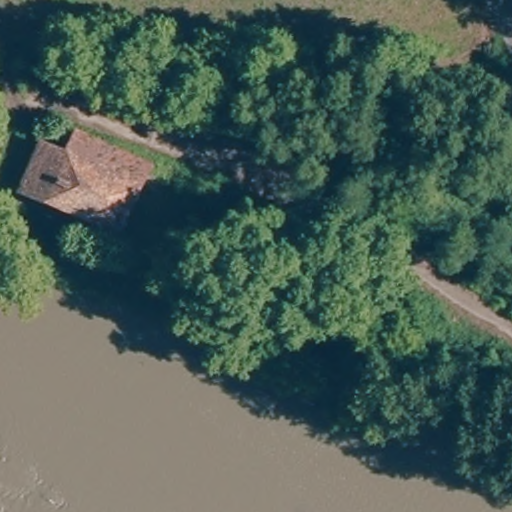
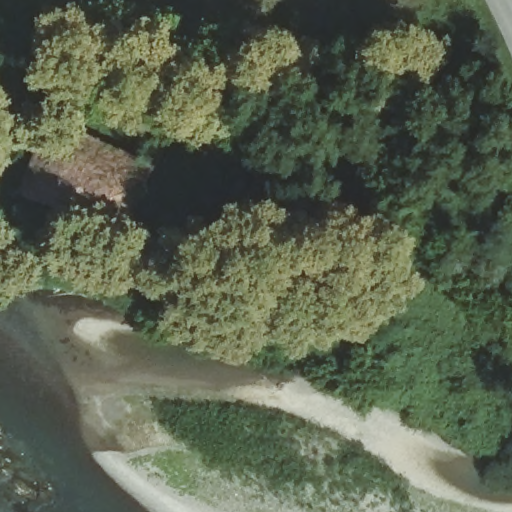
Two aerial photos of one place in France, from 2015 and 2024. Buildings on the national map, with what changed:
unchanged [(145,163),(121,236),(17,194),(37,145),(63,154),(70,135),(145,163)]

